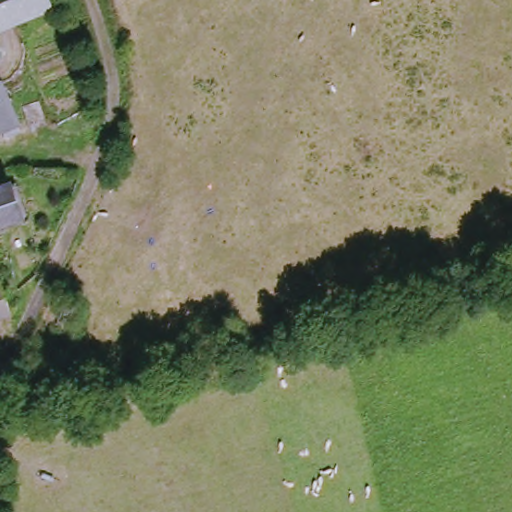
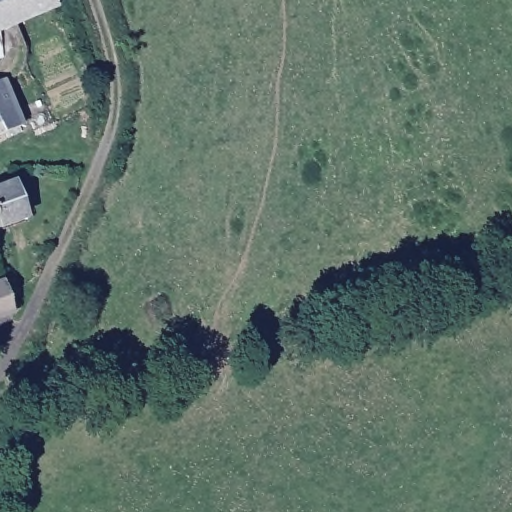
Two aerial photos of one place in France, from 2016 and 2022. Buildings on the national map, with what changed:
unchanged [(51,0),(52,4),(0,26),(0,0),(51,0)]
unchanged [(5,49),(0,51),(0,37),(5,49)]
unchanged [(17,126),(0,133),(0,85),(17,126)]
unchanged [(13,180),(25,214),(0,223),(0,185),(13,180)]
unchanged [(6,313),(0,315),(0,294),(6,313)]

